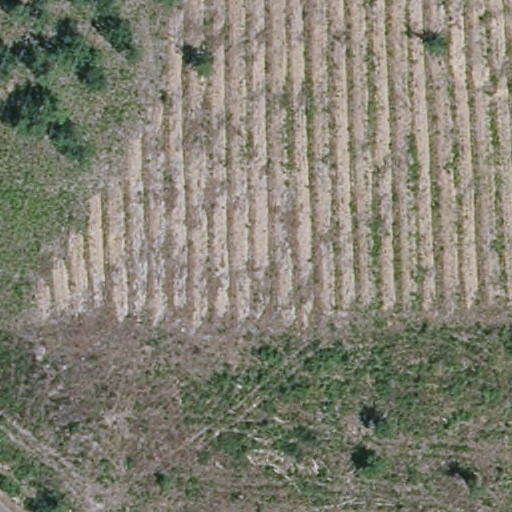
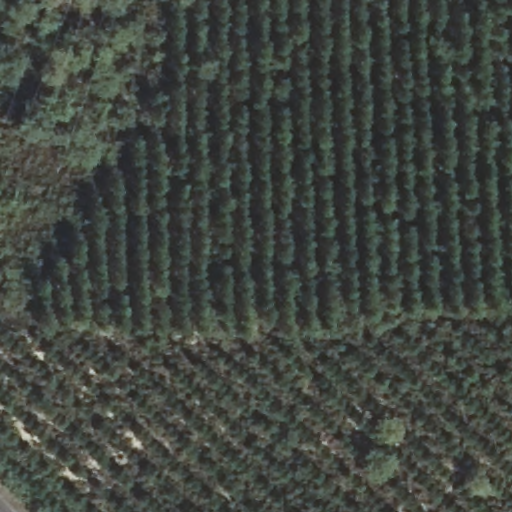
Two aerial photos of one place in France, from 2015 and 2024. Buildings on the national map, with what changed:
[]

